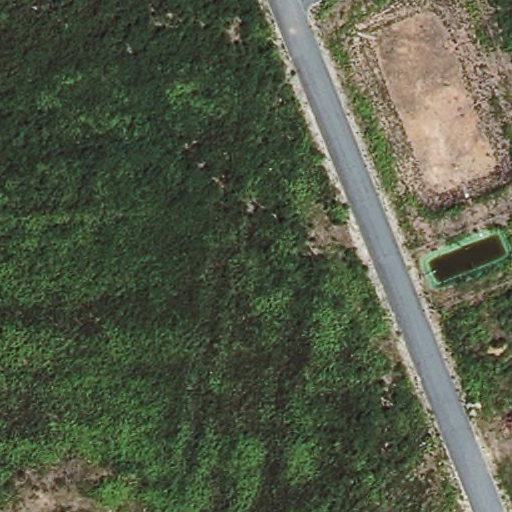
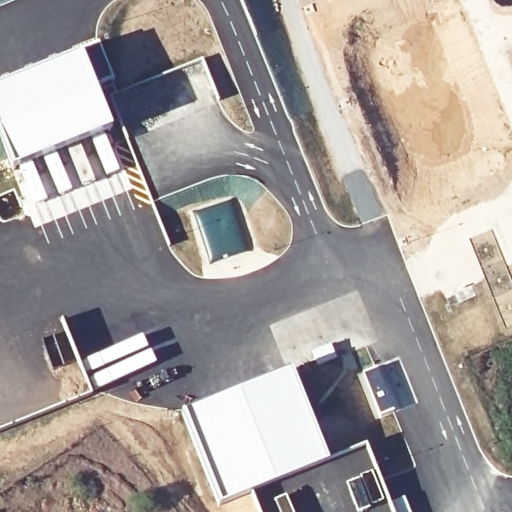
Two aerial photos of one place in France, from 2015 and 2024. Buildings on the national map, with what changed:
new [(97,47),(112,85),(97,92),(113,132),(14,172),(0,139),(0,87),(97,47)]
new [(292,366),(330,457),(330,462),(327,463),(327,465),(220,504),(181,410),(292,366)]
new [(330,462),(330,457),(367,442),(391,501),(364,512),(355,512),(327,465),(327,463),(330,462)]

